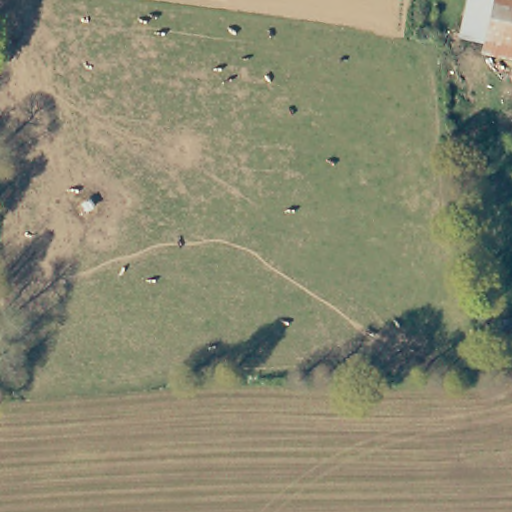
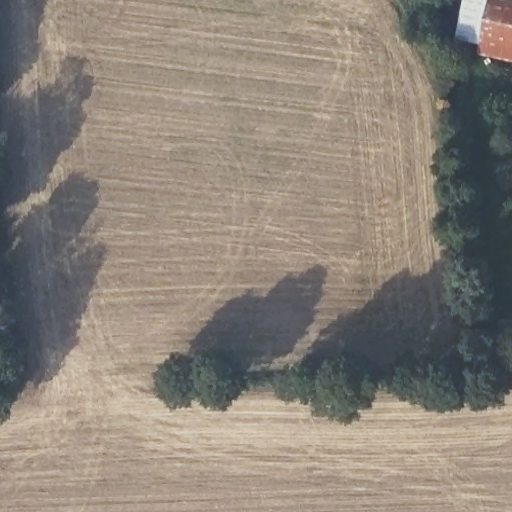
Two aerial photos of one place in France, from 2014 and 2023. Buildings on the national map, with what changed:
unchanged [(470,1),(512,10),(512,54),(462,44),(470,1)]

